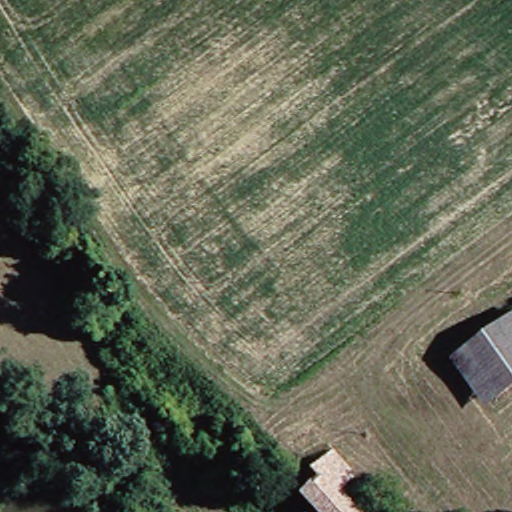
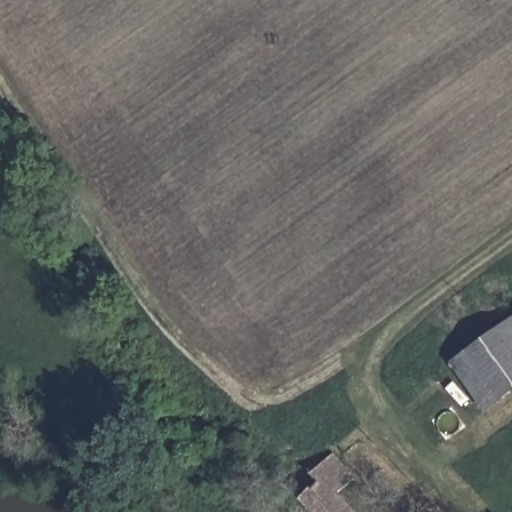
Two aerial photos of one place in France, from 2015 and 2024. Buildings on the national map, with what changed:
unchanged [(512,402),(506,406),(500,410),(462,360),(512,323),(512,402)]
unchanged [(343,495),(359,512),(325,512),(312,500),(320,493),(312,478),(339,455),(361,480),(343,495)]
unchanged [(361,480),(392,512),(359,512),(343,495),(361,480)]

